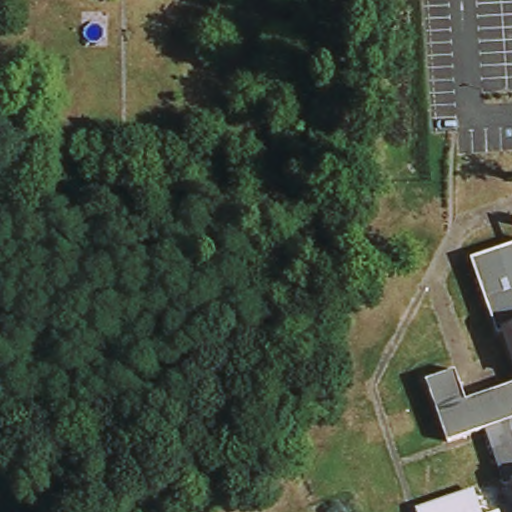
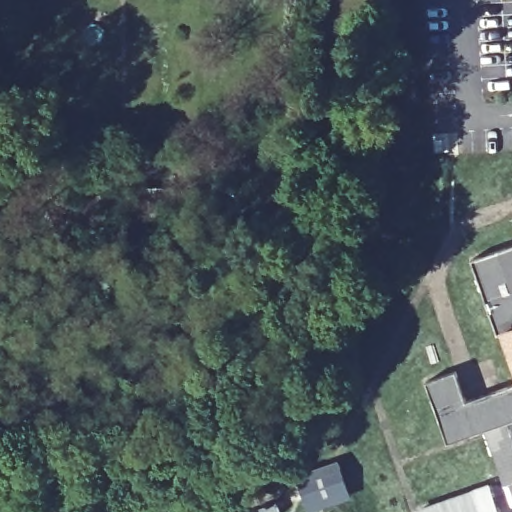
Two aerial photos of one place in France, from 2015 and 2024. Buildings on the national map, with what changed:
unchanged [(509,332),(501,334),(476,260),(512,247),(512,341),(509,332)]
unchanged [(470,398),(512,385),(512,420),(487,429),(451,441),(430,377),(460,369),(470,398)]
unchanged [(512,420),(512,480),(505,482),(487,429),(512,420)]
new [(310,511),(302,487),(307,485),(303,473),(338,461),(350,497),(310,511)]
unchanged [(475,495),(480,512),(419,512),(475,495)]

